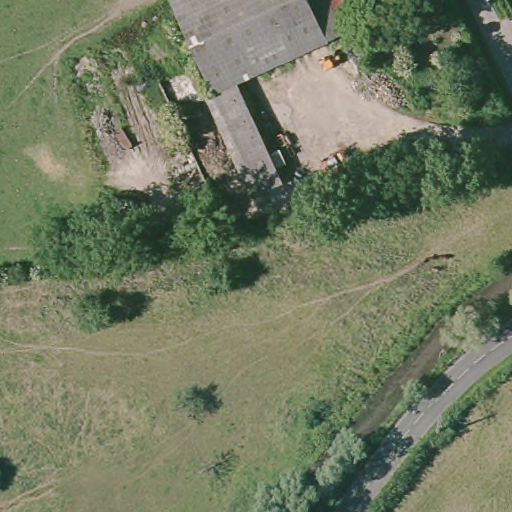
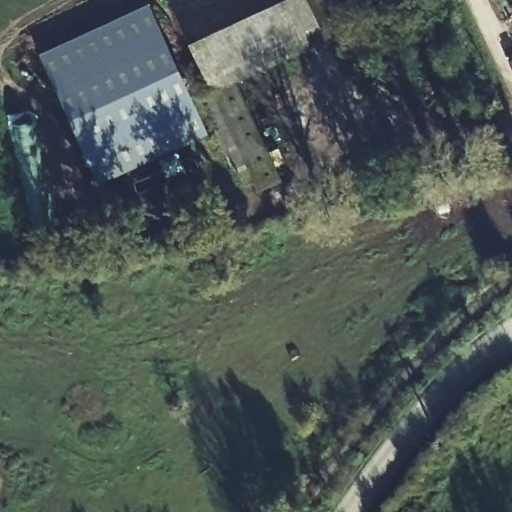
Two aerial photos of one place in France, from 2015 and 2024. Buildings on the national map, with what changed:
unchanged [(233,81),(279,178),(251,190),(164,0),(325,0),(338,32),(233,81)]
new [(98,178),(40,53),(148,4),(205,129),(98,178)]

